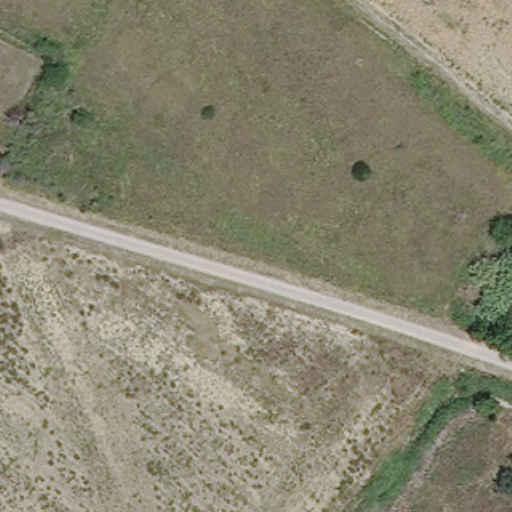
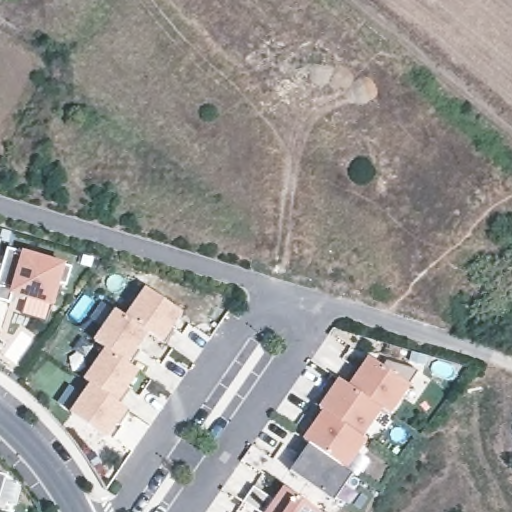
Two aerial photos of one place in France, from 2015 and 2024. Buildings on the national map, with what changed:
new [(72,266),(67,284),(58,282),(52,304),(13,292),(10,302),(0,300),(0,272),(8,247),(72,266)]
new [(0,272),(0,269),(1,269),(0,272)]
new [(147,287),(181,311),(171,326),(175,328),(165,343),(147,330),(127,316),(147,287)]
new [(117,309),(127,316),(147,330),(136,347),(140,349),(130,364),(107,348),(95,340),(117,309)]
new [(107,348),(130,364),(137,369),(126,385),(130,388),(120,403),(91,383),(85,379),(107,348)]
new [(355,366),(361,371),(370,357),(384,367),(388,361),(417,370),(419,371),(389,413),(381,408),(344,382),(355,366)]
new [(324,391),(330,395),(341,379),(344,382),(381,408),(361,436),(319,407),(319,406),(314,404),(324,391)]
new [(59,402),(68,389),(81,398),(91,383),(120,403),(130,410),(120,424),(116,421),(105,436),(71,412),(72,411),(59,402)]
new [(315,424),(309,420),(319,407),(361,436),(365,439),(345,468),(305,440),(315,424)]
new [(300,456),(294,452),(303,439),(305,440),(345,468),(354,474),(334,501),(290,471),(300,456)]
new [(0,498),(0,475),(7,476),(0,498)]
new [(276,501),(286,487),(321,512),(260,512),(244,501),(254,486),(276,501)]

